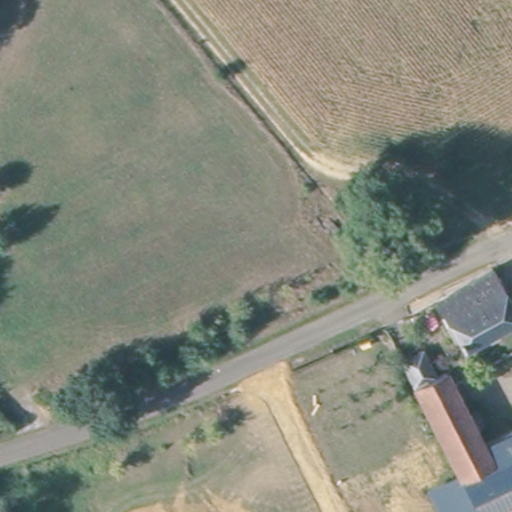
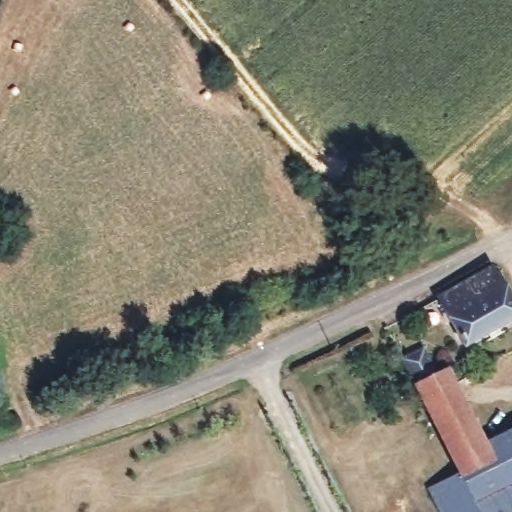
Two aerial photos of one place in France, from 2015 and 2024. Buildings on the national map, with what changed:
unchanged [(512,294),(512,319),(471,344),(442,293),(494,263),(512,294)]
unchanged [(432,496),(465,480),(460,471),(405,359),(426,348),(439,378),(455,370),(491,446),(512,436),(512,480),(506,482),(473,498),(477,506),(476,507),(478,512),(440,512),(432,496)]
unchanged [(476,507),(477,506),(512,489),(512,512),(478,512),(476,507)]

